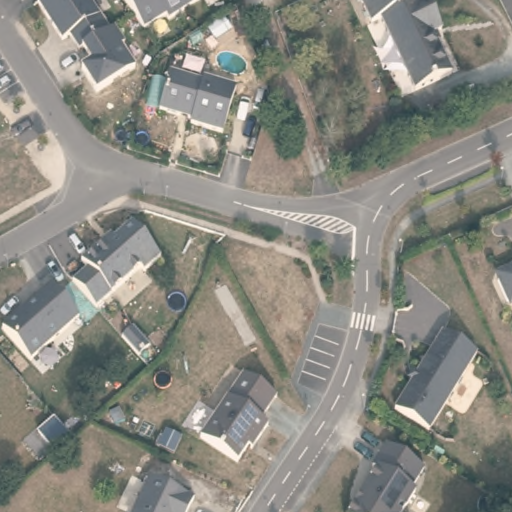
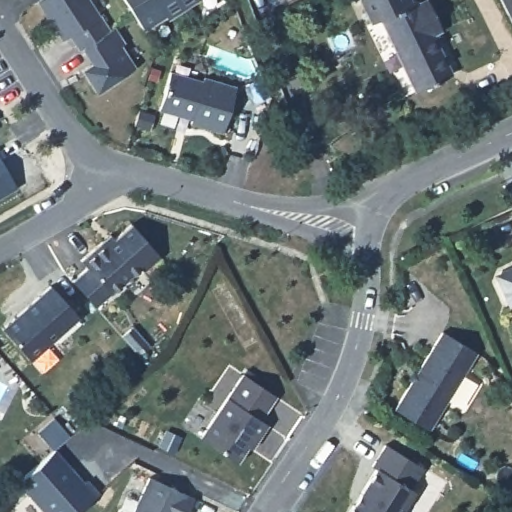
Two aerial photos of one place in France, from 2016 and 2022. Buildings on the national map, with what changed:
unchanged [(113,23),(128,44),(124,47),(136,66),(136,67),(96,93),(83,71),(90,66),(70,36),(63,41),(36,2),(40,0),(91,0),(109,26),(113,23)]
unchanged [(165,17),(146,31),(124,0),(201,0),(170,22),(165,17)]
unchanged [(413,1),(414,3),(421,0),(423,0),(437,30),(428,34),(447,74),(410,92),(377,19),(368,24),(356,0),(407,0),(408,3),(413,1)]
unchanged [(199,81),(203,78),(234,88),(224,130),(158,111),(168,74),(199,81)]
new [(0,197),(0,159),(18,187),(0,197)]
unchanged [(159,257),(142,276),(137,270),(95,307),(73,282),(87,267),(82,262),(128,223),(159,257)]
unchanged [(511,305),(502,302),(493,282),(496,272),(506,268),(512,269),(512,304),(511,305)]
unchanged [(48,288),(79,317),(29,357),(3,328),(48,288)]
unchanged [(437,332),(471,353),(423,431),(389,409),(437,332)]
unchanged [(248,447),(237,462),(200,437),(243,375),(276,397),(260,421),(268,426),(257,442),(252,450),(248,447)]
new [(51,451),(36,431),(54,416),(69,436),(54,450),(84,482),(86,479),(99,494),(79,512),(44,512),(18,482),(51,451)]
unchanged [(423,468),(410,490),(414,492),(402,512),(349,512),(376,468),(372,466),(385,445),(423,468)]
unchanged [(144,482),(188,502),(184,512),(130,512),(144,482)]

